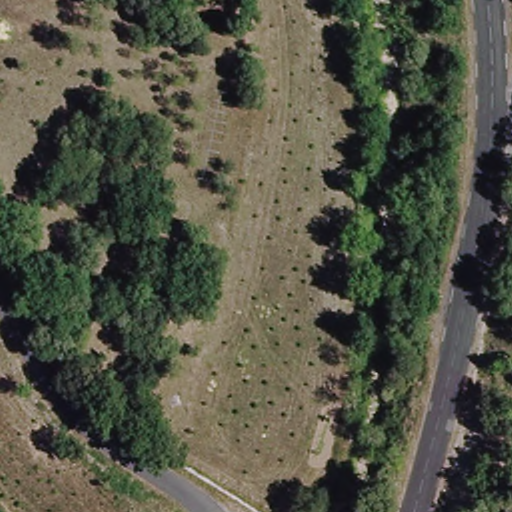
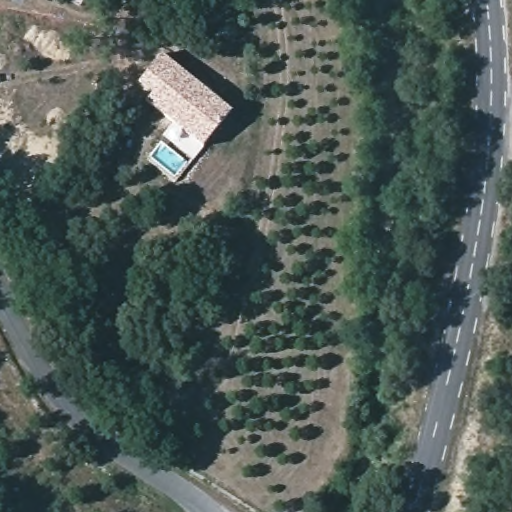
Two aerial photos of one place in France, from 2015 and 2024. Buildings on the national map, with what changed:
new [(145,101),(153,92),(141,81),(162,55),(229,109),(200,146),(145,101)]

